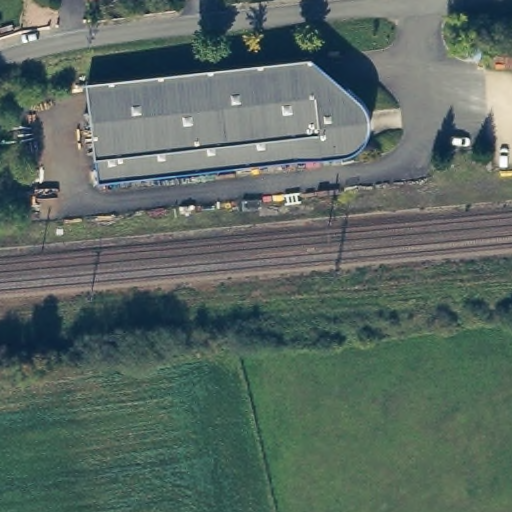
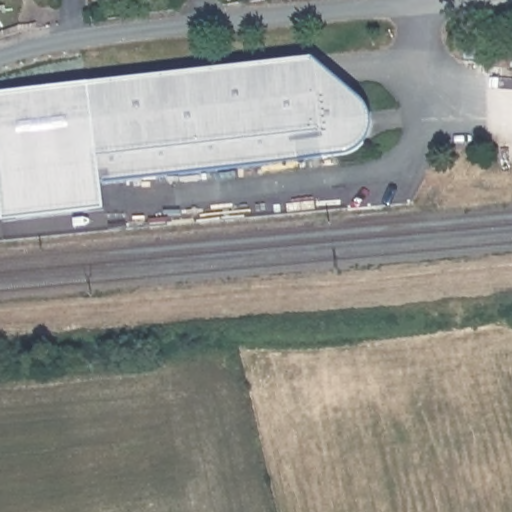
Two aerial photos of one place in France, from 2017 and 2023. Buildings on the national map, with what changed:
unchanged [(362,136),(361,141),(360,144),(358,147),(356,150),(353,152),(350,154),(348,154),(97,182),(88,84),(311,58),(315,92),(342,90),(348,90),(350,91),(356,97),(366,109),(367,111),(367,113),(370,135),(362,136)]
new [(100,209),(3,220),(0,188),(0,95),(88,84),(97,182),(100,209)]

